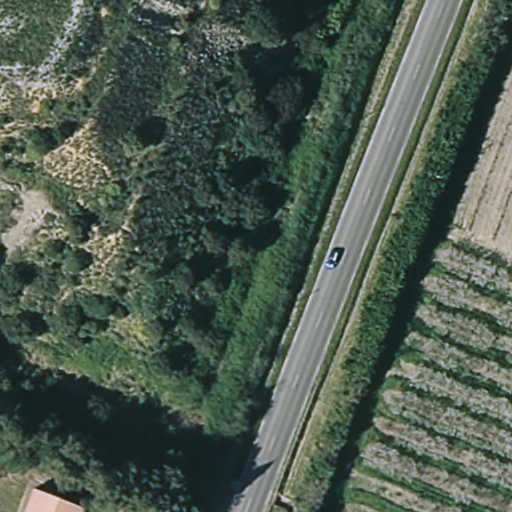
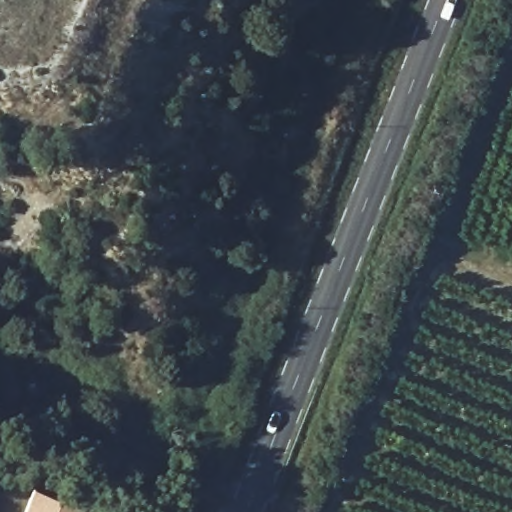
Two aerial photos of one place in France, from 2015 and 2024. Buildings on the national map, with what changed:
unchanged [(33,495),(81,512),(26,512),(33,495)]

